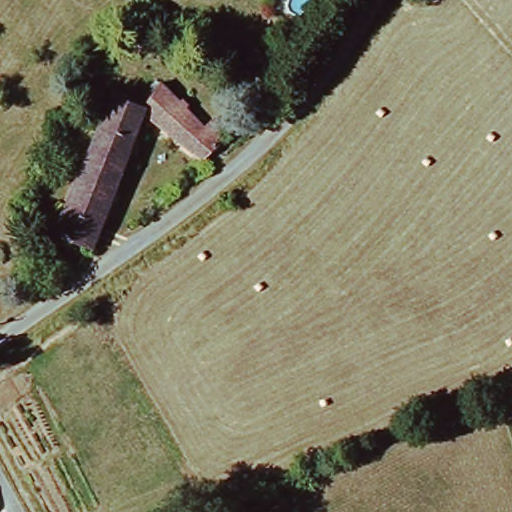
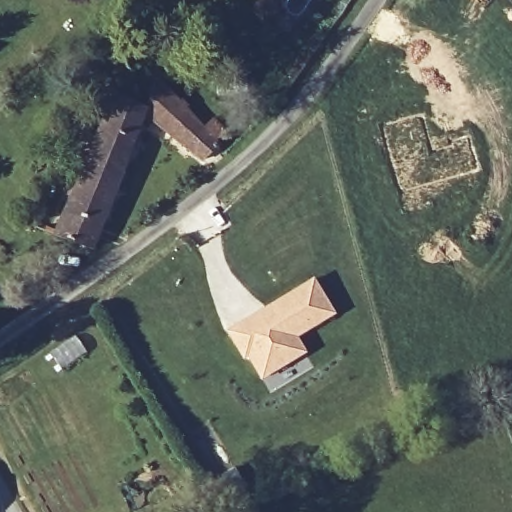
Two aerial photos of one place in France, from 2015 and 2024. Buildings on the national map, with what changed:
unchanged [(103,229),(98,246),(59,230),(78,191),(119,101),(140,112),(160,86),(208,127),(214,119),(226,125),(218,140),(223,144),(208,162),(148,118),(103,229)]
new [(314,276),(336,314),(298,336),(307,351),(262,379),(248,356),(244,359),(226,328),(314,276)]

